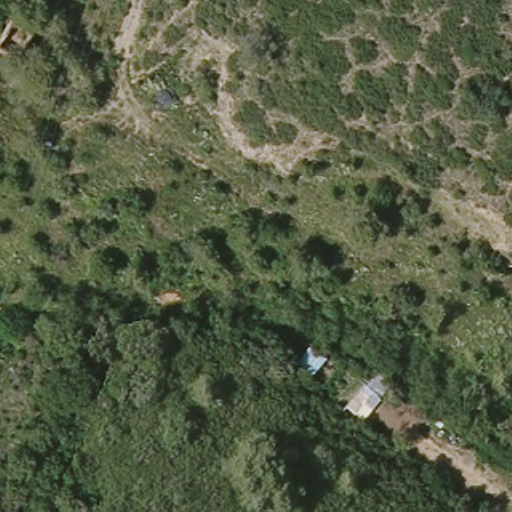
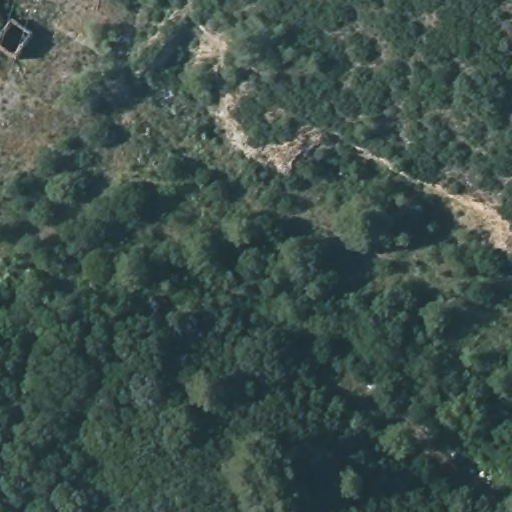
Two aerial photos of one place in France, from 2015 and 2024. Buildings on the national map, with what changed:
unchanged [(0,52),(0,22),(19,29),(10,56),(0,52)]

